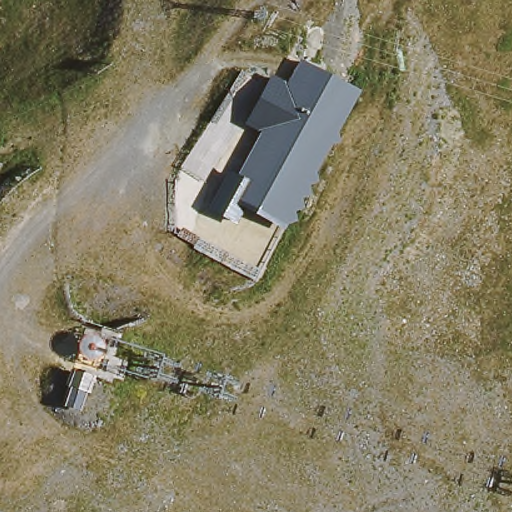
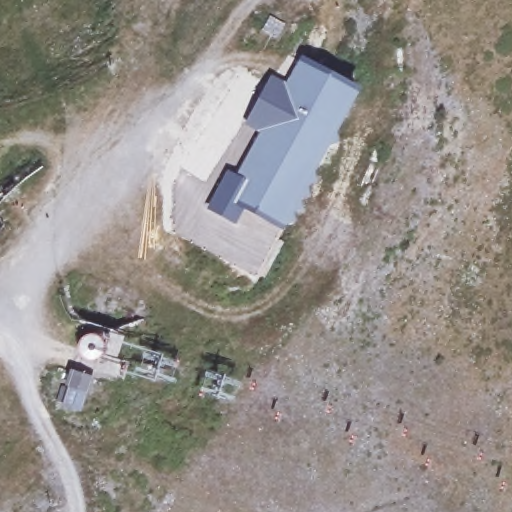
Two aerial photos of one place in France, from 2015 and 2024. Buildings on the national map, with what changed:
unchanged [(355,94),(335,134),(338,145),(328,147),(313,176),(317,185),(306,188),(310,199),(299,201),(302,212),(292,213),(295,224),(282,228),(224,197),(258,133),(242,125),(270,73),(286,82),(297,63),(355,94)]

